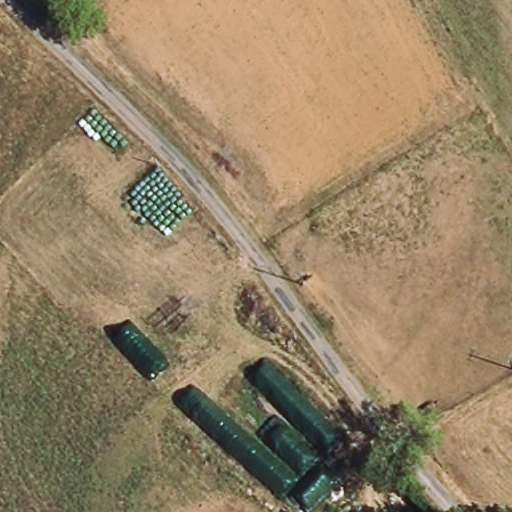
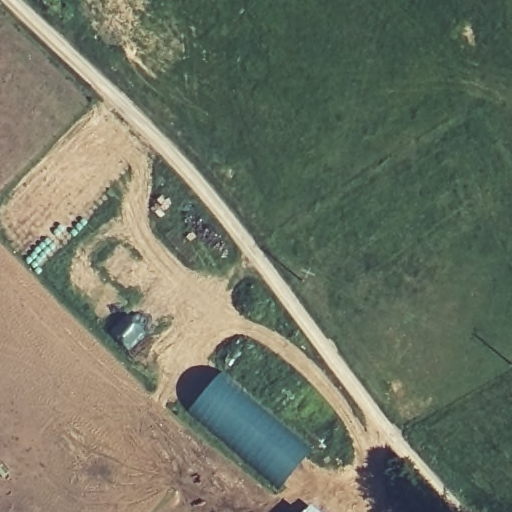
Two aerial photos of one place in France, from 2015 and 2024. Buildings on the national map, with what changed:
new [(278,488),(185,411),(218,372),(310,451),(278,488)]

